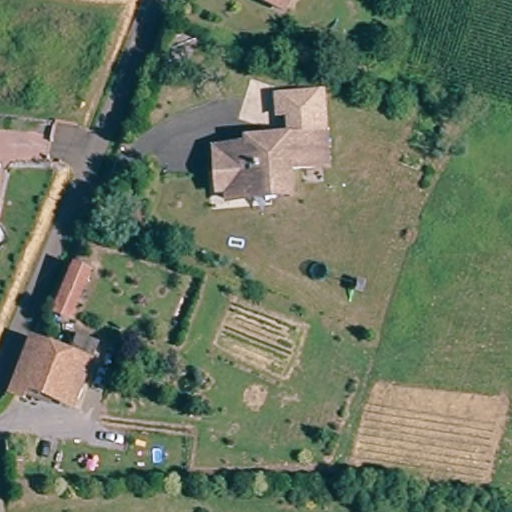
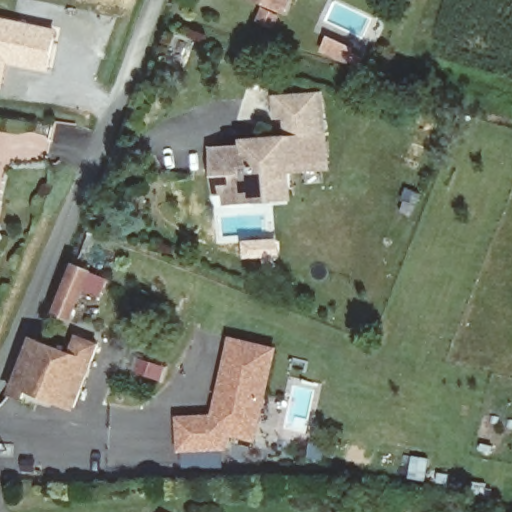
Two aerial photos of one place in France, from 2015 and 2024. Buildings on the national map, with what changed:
unchanged [(261,0),(285,0),(280,9),(261,0)]
new [(15,22),(35,26),(57,31),(48,67),(27,62),(7,58),(2,83),(0,83),(0,19),(15,22)]
unchanged [(246,193),(222,194),(222,185),(212,185),(210,164),(209,143),(242,141),(241,136),(257,135),(285,134),(284,111),(274,112),(273,94),(318,91),(322,162),(284,164),(285,183),(285,190),(246,193)]
unchanged [(65,316),(49,309),(68,267),(83,274),(65,316)]
new [(279,347),(257,441),(231,435),(227,451),(222,451),(223,466),(183,468),(183,453),(177,453),(176,416),(212,414),(229,335),(279,347)]
unchanged [(86,347),(65,408),(20,393),(40,338),(63,346),(65,340),(86,347)]

